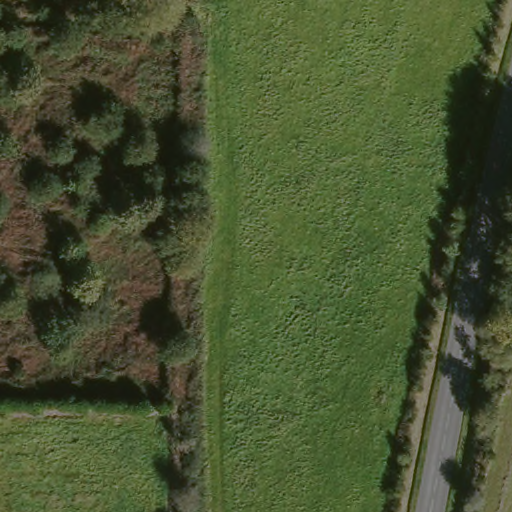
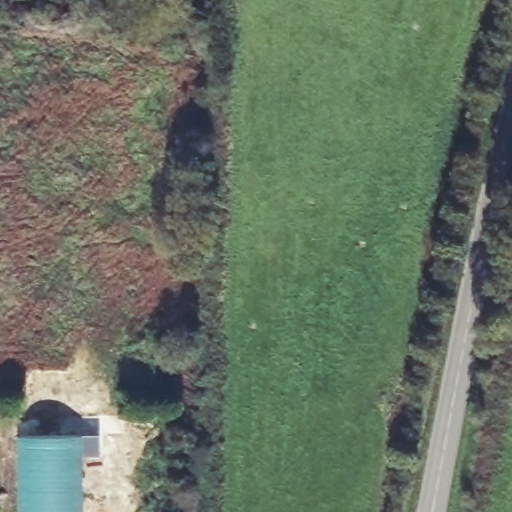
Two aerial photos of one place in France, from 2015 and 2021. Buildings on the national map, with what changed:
new [(17,438),(99,435),(100,458),(81,458),(82,512),(18,512),(17,438)]

